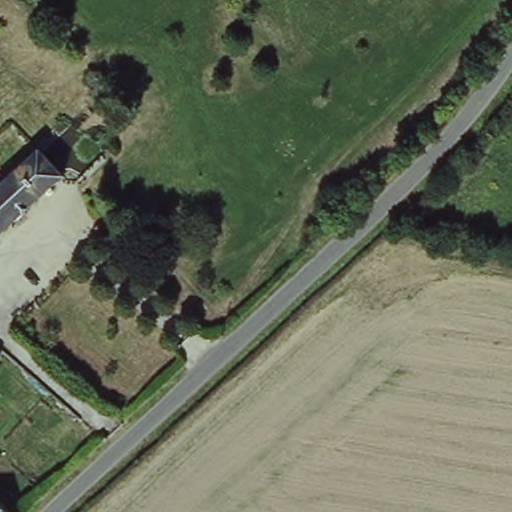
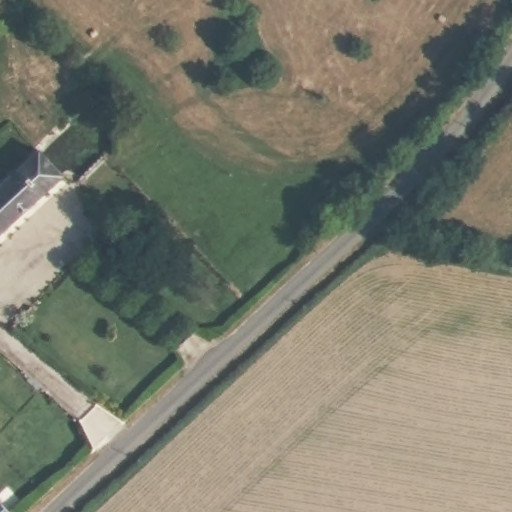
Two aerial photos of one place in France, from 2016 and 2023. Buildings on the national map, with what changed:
unchanged [(63,179),(13,225),(0,236),(0,195),(46,155),(63,179)]
unchanged [(3,497),(14,510),(16,512),(0,512),(0,495),(3,497)]

